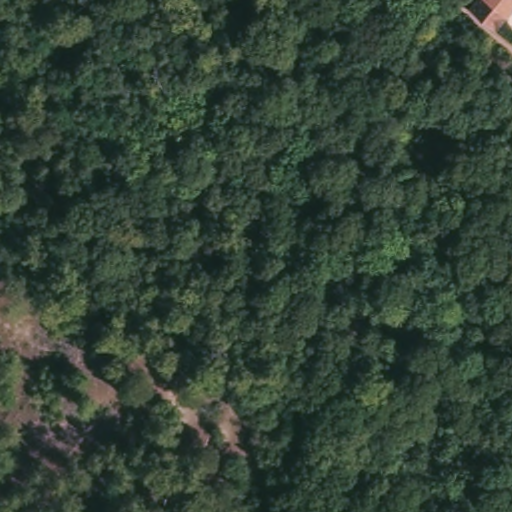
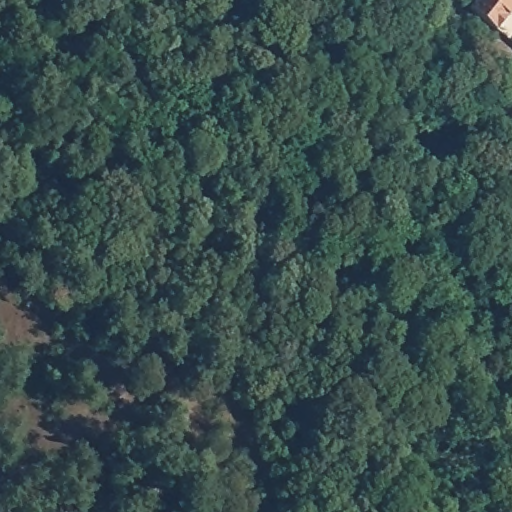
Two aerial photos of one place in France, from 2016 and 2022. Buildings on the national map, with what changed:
unchanged [(479,0),(512,0),(512,14),(500,30),(473,7),(479,0)]

